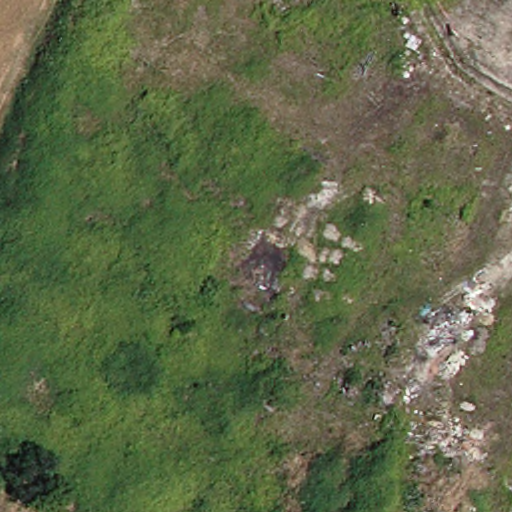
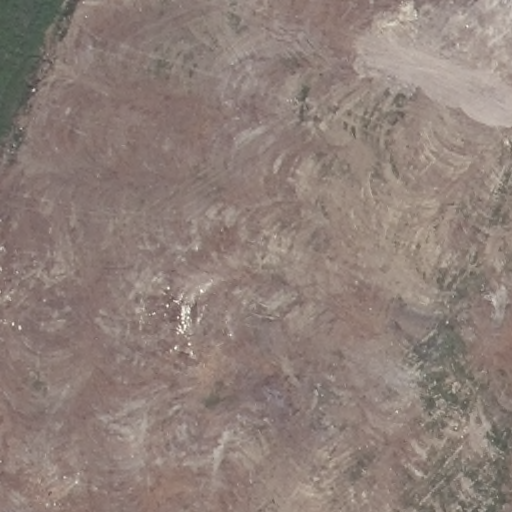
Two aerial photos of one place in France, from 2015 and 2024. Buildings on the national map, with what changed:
[]

